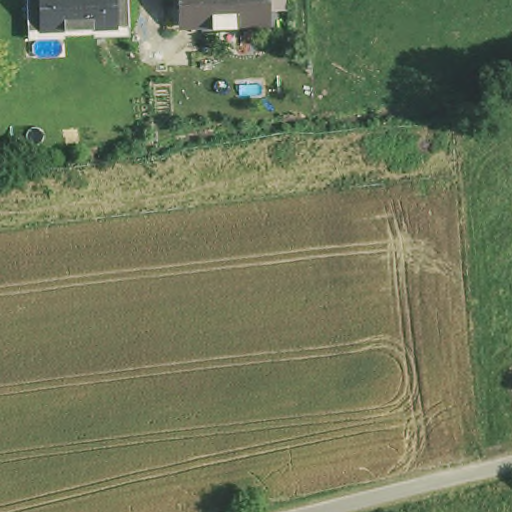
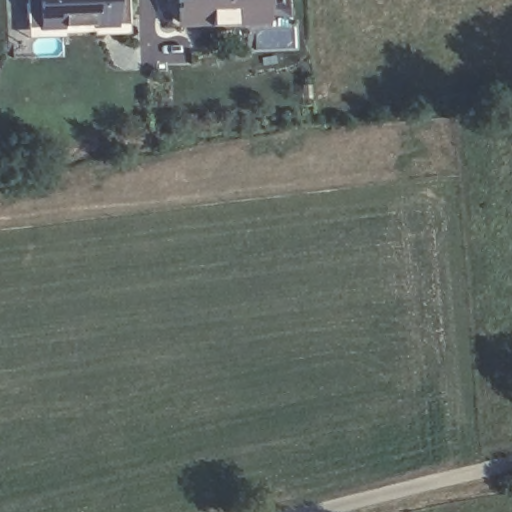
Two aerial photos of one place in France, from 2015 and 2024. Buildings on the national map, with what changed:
unchanged [(27,14),(26,0),(128,0),(129,29),(93,30),(92,20),(63,21),(64,31),(27,33),(27,14)]
unchanged [(230,25),(211,26),(211,21),(179,23),(178,0),(268,0),(268,9),(269,24),(237,25),(230,25)]

